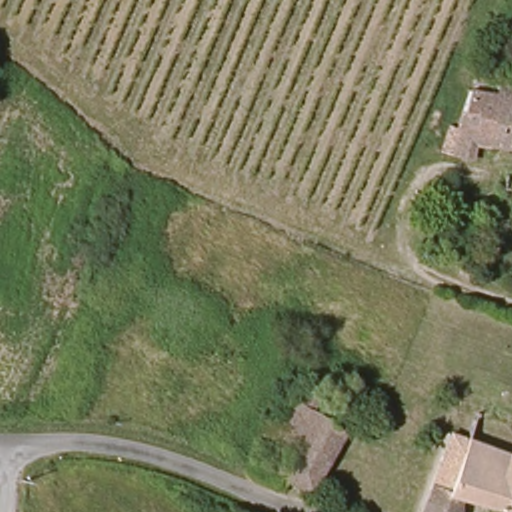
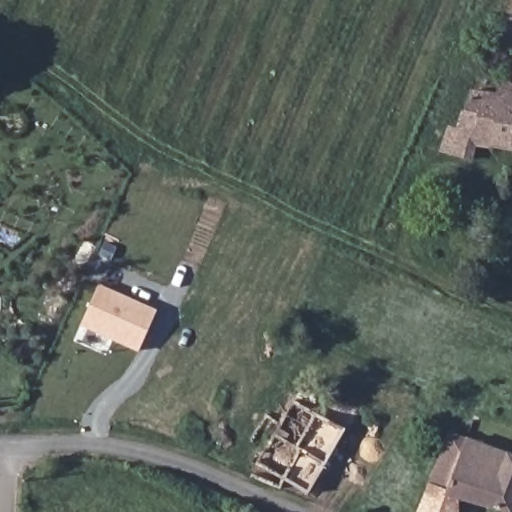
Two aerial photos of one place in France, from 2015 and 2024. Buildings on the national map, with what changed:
unchanged [(492,87),(512,90),(512,153),(472,147),(467,160),(442,150),(466,90),(488,96),(492,87)]
new [(137,348),(82,324),(97,290),(156,310),(137,348)]
unchanged [(334,426),(341,430),(306,496),(282,484),(278,492),(251,477),(265,450),(252,443),(267,417),(279,423),(290,403),(300,408),(334,426)]
unchanged [(454,512),(419,512),(450,430),(468,437),(491,446),(512,454),(512,507),(510,512),(508,512),(479,505),(458,499),(454,512)]

